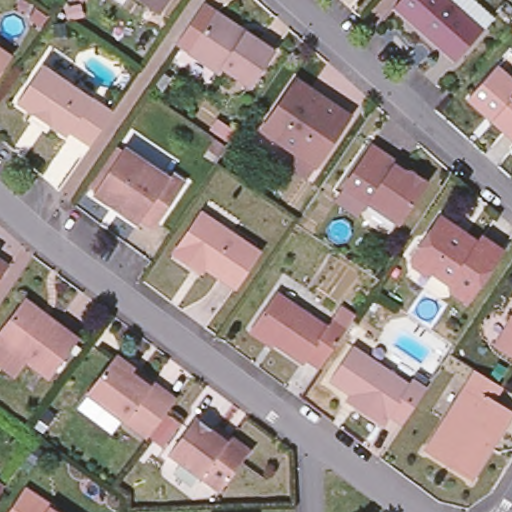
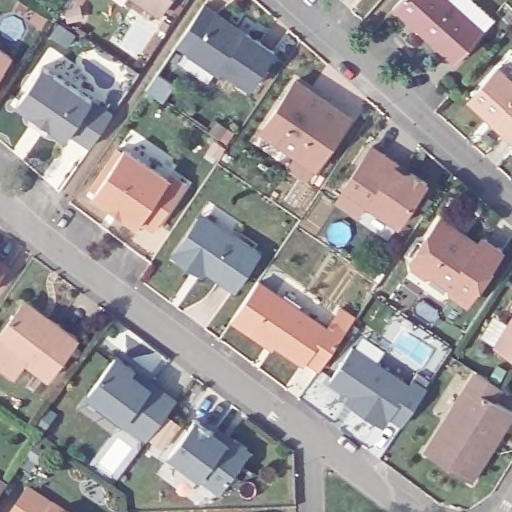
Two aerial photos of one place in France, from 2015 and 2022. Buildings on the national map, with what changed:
unchanged [(142,0),(162,0),(156,9),(142,0)]
unchanged [(394,0),(463,0),(484,19),(475,29),(447,63),(386,10),(394,0)]
unchanged [(209,14),(229,27),(229,29),(238,34),(243,28),(271,47),(248,83),(220,64),(216,70),(186,50),(209,14)]
unchanged [(0,62),(0,44),(8,49),(0,62)]
unchanged [(468,90),(495,60),(512,76),(512,135),(490,115),(466,93),(468,90)]
unchanged [(106,109),(82,144),(60,129),(58,132),(9,99),(34,61),(106,109)]
unchanged [(293,80),(309,91),(311,98),(319,103),(321,99),(349,117),(316,168),(294,154),(296,149),(283,140),(280,145),(260,131),(293,80)]
unchanged [(365,143),(391,159),(389,163),(399,170),(404,169),(421,179),(393,220),(338,184),(365,143)]
unchanged [(160,174),(162,170),(176,179),(147,224),(134,217),(131,220),(85,191),(115,145),(160,174)]
unchanged [(195,214),(212,225),(217,219),(257,246),(231,284),(191,256),(187,262),(169,250),(195,214)]
unchanged [(477,244),(481,239),(502,253),(466,304),(449,293),(448,285),(433,276),(426,277),(408,266),(439,219),(477,244)]
unchanged [(0,262),(0,260),(1,261),(0,262)]
unchanged [(250,328),(253,323),(276,288),(329,320),(334,312),(349,321),(322,361),(309,352),(305,357),(276,339),(274,343),(250,328)]
unchanged [(0,323),(15,302),(38,318),(40,314),(70,334),(44,373),(20,357),(10,373),(0,366),(0,323)]
unchanged [(494,340),(512,310),(512,352),(494,340)]
unchanged [(411,383),(414,377),(429,387),(404,423),(389,414),(384,424),(354,402),(359,395),(331,376),(354,344),(411,383)]
unchanged [(133,365),(131,369),(148,382),(151,379),(176,396),(147,436),(85,391),(113,351),(133,365)]
unchanged [(469,474),(424,445),(465,378),(474,364),(499,381),(492,394),(507,403),(504,407),(509,410),(499,427),(489,442),(469,474)]
unchanged [(240,447),(214,484),(163,447),(189,411),(205,423),(209,417),(227,431),(240,439),(240,447)]
unchanged [(28,486),(53,503),(50,507),(58,512),(9,512),(28,486)]

